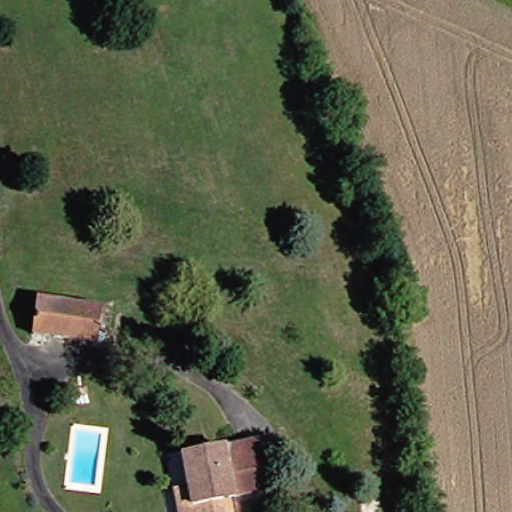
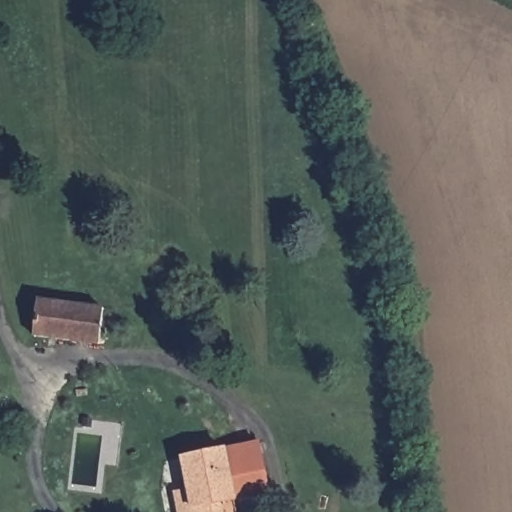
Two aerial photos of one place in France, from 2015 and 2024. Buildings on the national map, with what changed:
unchanged [(90,338),(37,330),(42,297),(105,306),(101,340),(90,338)]
unchanged [(186,454),(224,447),(261,442),(271,489),(234,496),(237,512),(181,512),(180,509),(176,490),(192,486),(186,454)]

